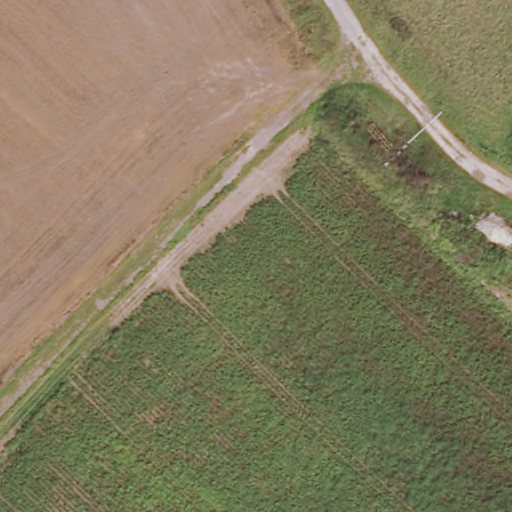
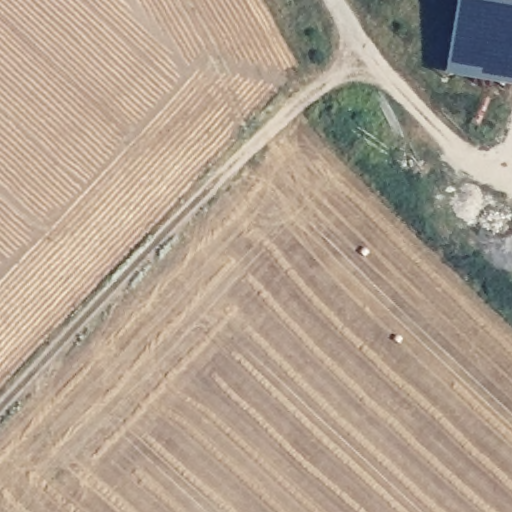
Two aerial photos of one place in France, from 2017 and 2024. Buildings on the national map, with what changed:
new [(443,74),(458,0),(512,0),(512,86),(443,74)]

